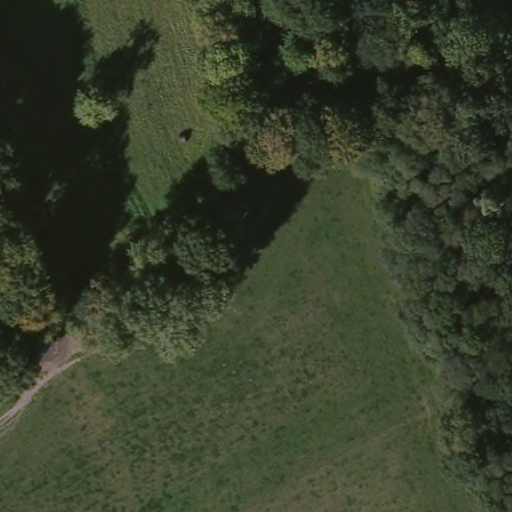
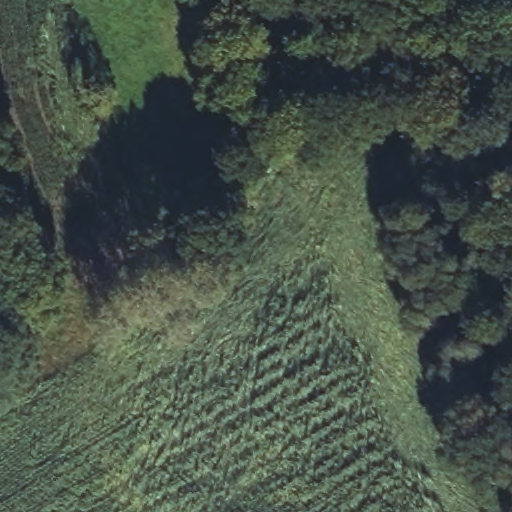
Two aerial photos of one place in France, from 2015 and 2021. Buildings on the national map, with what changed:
[]

